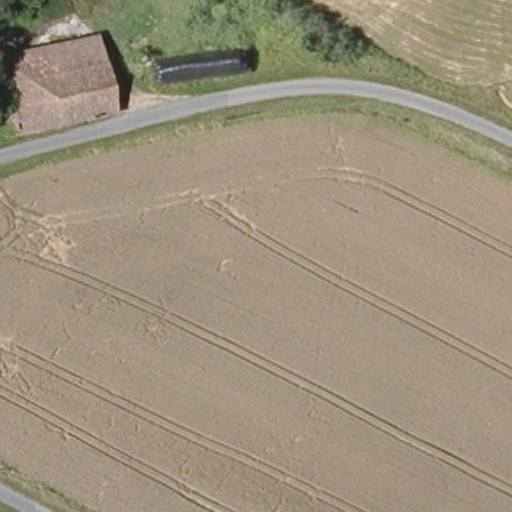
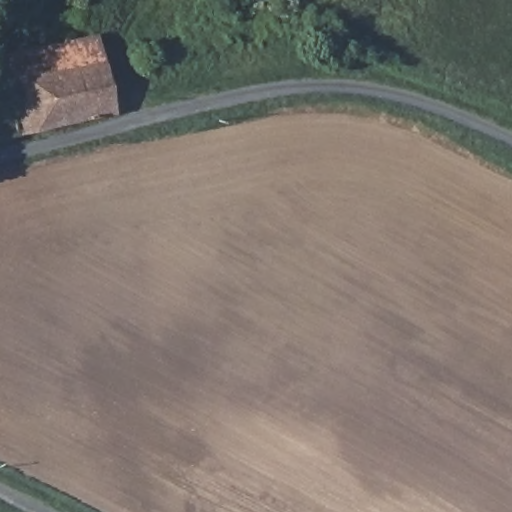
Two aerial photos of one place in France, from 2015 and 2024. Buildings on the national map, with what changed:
unchanged [(0,95),(0,63),(90,42),(107,117),(62,125),(1,141),(0,136),(0,107),(2,107),(0,95)]

